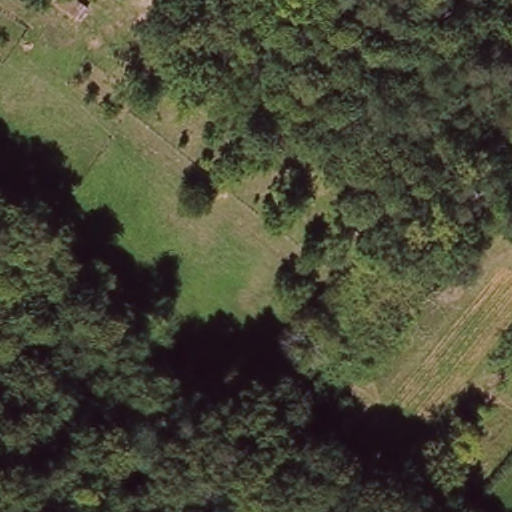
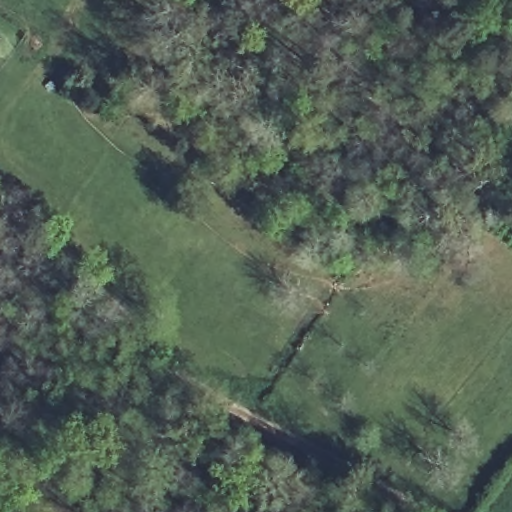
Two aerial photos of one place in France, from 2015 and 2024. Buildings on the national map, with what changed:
[]

